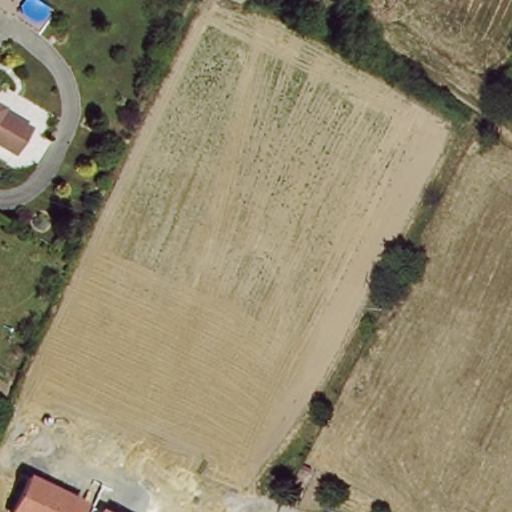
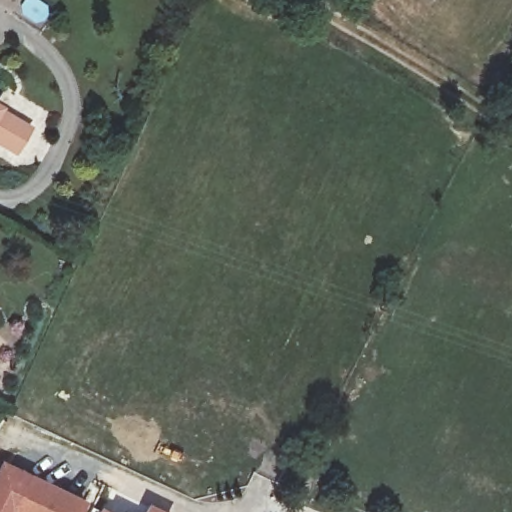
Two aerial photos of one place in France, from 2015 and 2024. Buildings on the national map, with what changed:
unchanged [(0,100),(8,105),(4,112),(31,128),(19,151),(15,160),(0,152),(0,100)]
new [(11,512),(0,512),(0,463),(2,459),(30,474),(15,503),(11,512)]
unchanged [(88,503),(83,512),(11,512),(30,474),(88,503)]
unchanged [(111,512),(99,512),(101,506),(111,512)]

